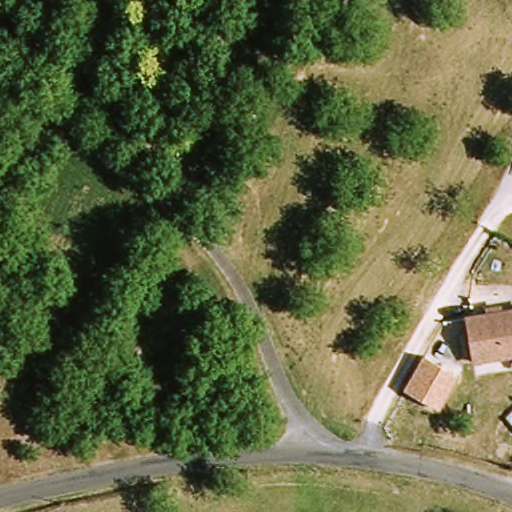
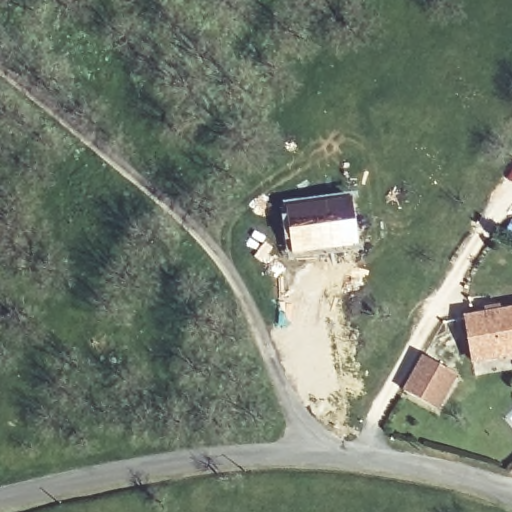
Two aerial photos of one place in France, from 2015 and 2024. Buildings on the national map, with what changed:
new [(353,192),(360,247),(290,256),(282,201),(353,192)]
unchanged [(465,320),(512,311),(512,357),(472,364),(465,320)]
new [(457,376),(437,410),(402,390),(422,357),(457,376)]

